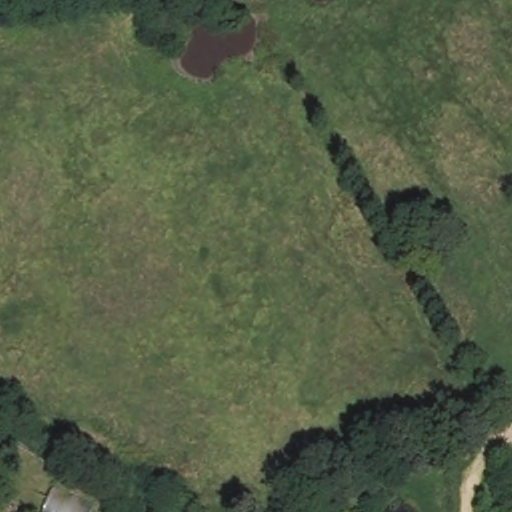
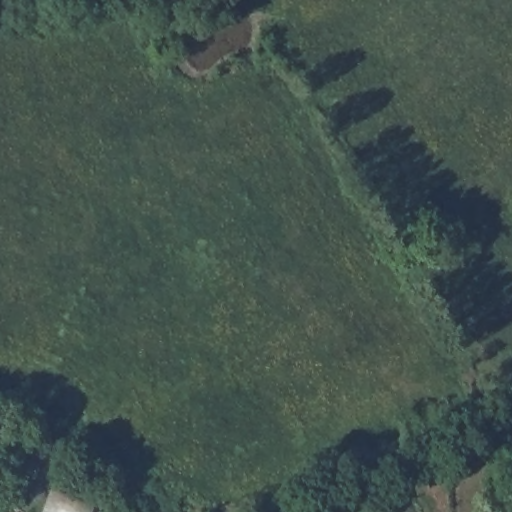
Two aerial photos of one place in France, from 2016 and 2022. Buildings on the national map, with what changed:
unchanged [(127,509),(140,502),(146,512),(129,512),(127,509)]

